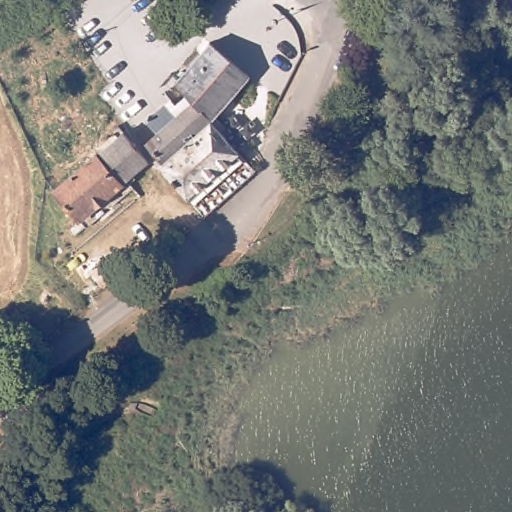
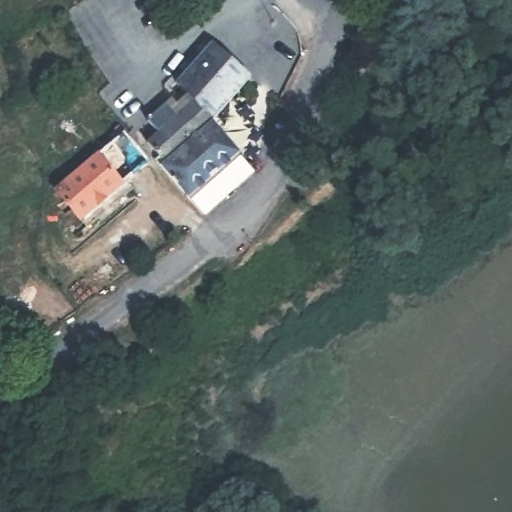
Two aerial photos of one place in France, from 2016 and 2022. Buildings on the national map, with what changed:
unchanged [(169,102),(179,115),(194,102),(176,83),(212,42),(252,77),(213,122),(250,164),(199,209),(157,162),(161,158),(147,144),(159,134),(147,122),(169,102)]
unchanged [(125,132),(151,162),(130,181),(135,188),(88,228),(56,191),(125,132)]

